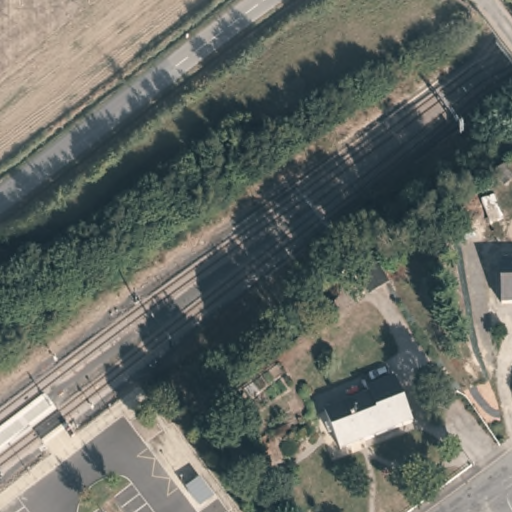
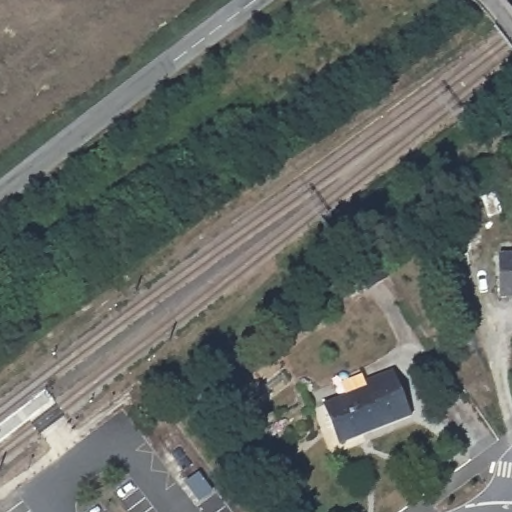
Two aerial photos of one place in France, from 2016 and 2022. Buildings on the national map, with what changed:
unchanged [(497,252),(512,251),(512,294),(499,295),(497,252)]
unchanged [(367,288),(355,270),(370,258),(384,278),(367,288)]
unchanged [(411,415),(362,435),(359,431),(337,439),(323,403),(367,385),(366,379),(393,369),(411,415)]

